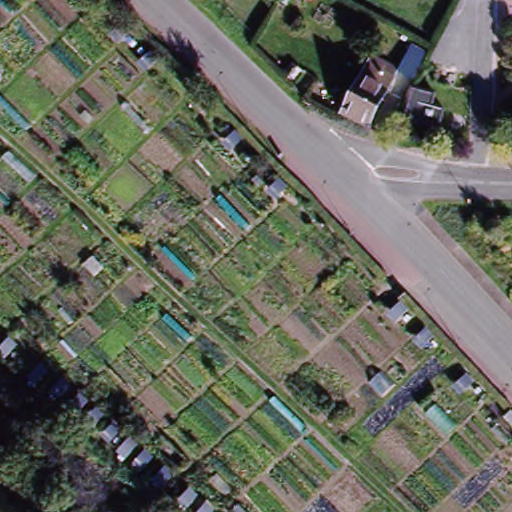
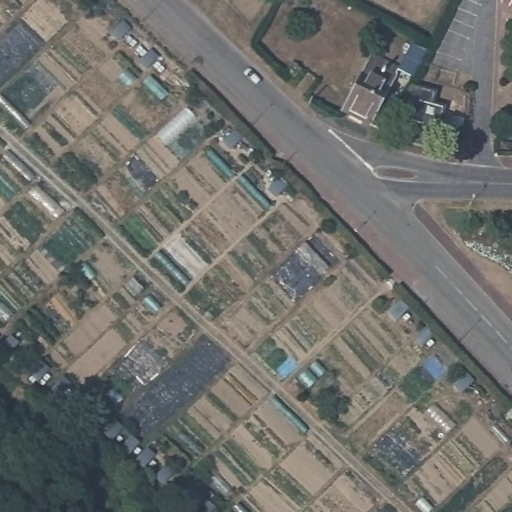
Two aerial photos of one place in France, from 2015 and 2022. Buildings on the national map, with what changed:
unchanged [(135,41),(131,45),(115,30),(119,25),(135,41)]
unchanged [(416,75),(408,90),(393,81),(406,55),(422,64),(416,75)]
unchanged [(337,125),(363,75),(365,76),(371,67),(392,79),(387,87),(360,137),(337,125)]
unchanged [(203,104),(198,109),(191,102),(196,97),(203,104)]
unchanged [(428,105),(425,116),(437,120),(435,134),(440,135),(439,139),(400,129),(406,100),(428,105)]
unchanged [(283,190),(278,195),(266,183),(270,179),(283,190)]
unchanged [(408,311),(403,316),(396,310),(402,305),(408,311)]
unchanged [(440,345),(435,349),(425,340),(431,335),(440,345)]
unchanged [(2,358),(0,356),(0,346),(3,343),(10,350),(2,358)]
unchanged [(65,392),(58,400),(50,391),(57,385),(65,392)]
unchanged [(486,392),(480,397),(474,391),(480,386),(486,392)]
unchanged [(512,414),(512,429),(502,418),(510,412),(512,414)]
unchanged [(115,431),(107,441),(99,433),(107,423),(115,431)]
unchanged [(135,450),(128,459),(119,451),(126,442),(135,450)]
unchanged [(150,463),(142,473),(134,465),(142,456),(150,463)]
unchanged [(168,479),(162,487),(154,480),(160,472),(168,479)]
unchanged [(195,501),(187,510),(180,502),(186,493),(195,501)]
unchanged [(197,512),(201,507),(207,512),(197,512)]

